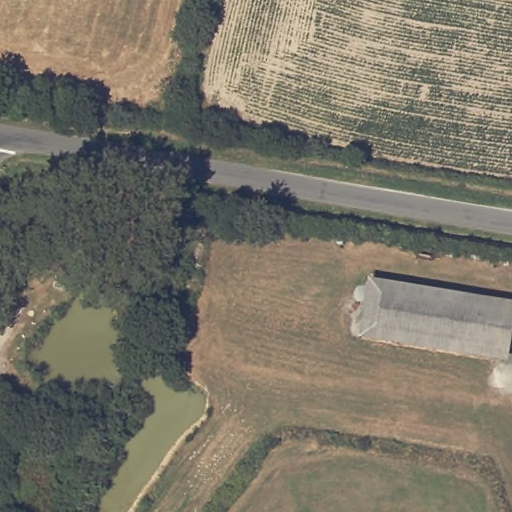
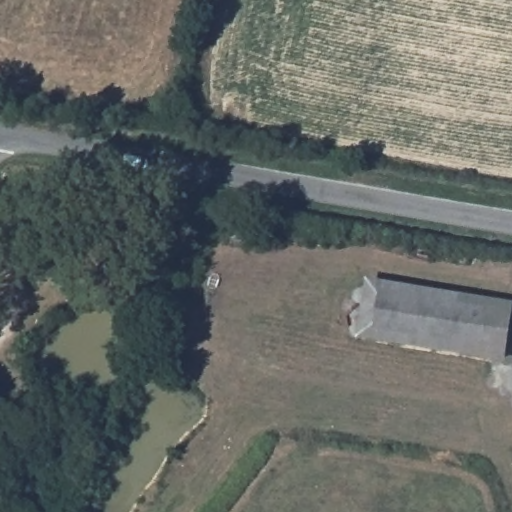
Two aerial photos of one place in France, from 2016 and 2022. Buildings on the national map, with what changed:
unchanged [(512,316),(505,358),(365,337),(373,281),(512,303),(512,316)]

